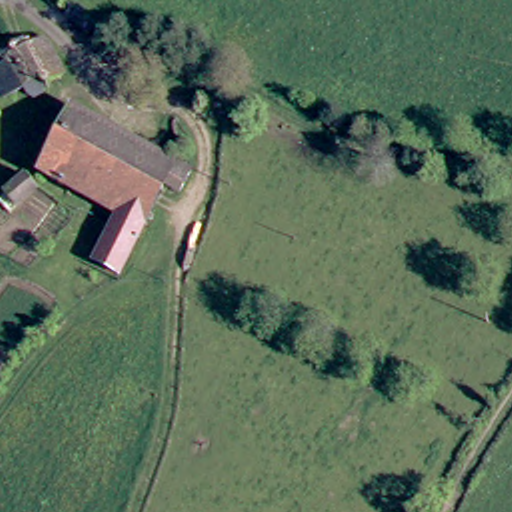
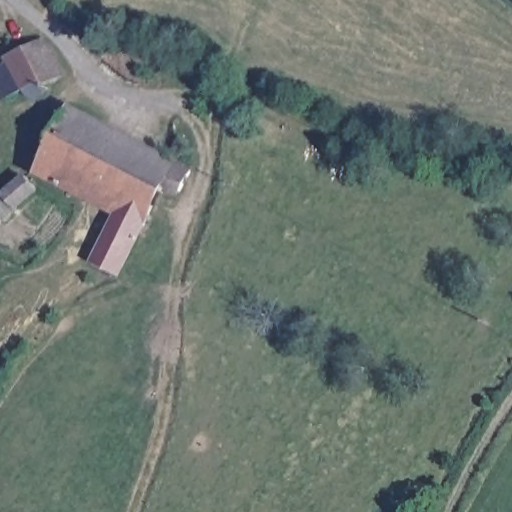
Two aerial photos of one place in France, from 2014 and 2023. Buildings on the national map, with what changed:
unchanged [(10,66),(27,54),(46,42),(69,78),(52,88),(60,99),(43,110),(34,99),(16,113),(0,91),(0,80),(13,71),(10,66)]
unchanged [(142,266),(132,260),(119,279),(93,262),(118,223),(42,173),(85,106),(189,172),(146,237),(157,244),(142,266)]
unchanged [(1,195),(24,170),(40,185),(18,210),(1,195)]

